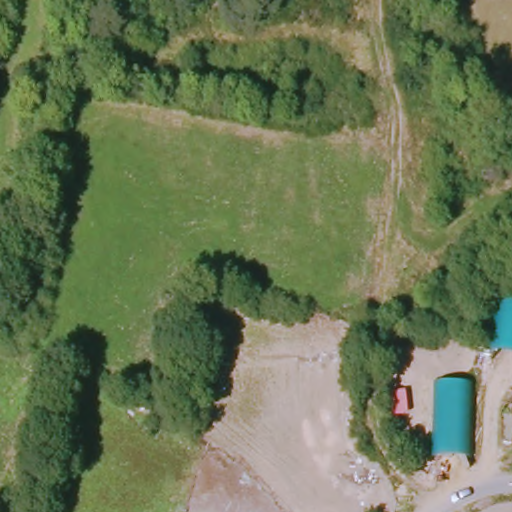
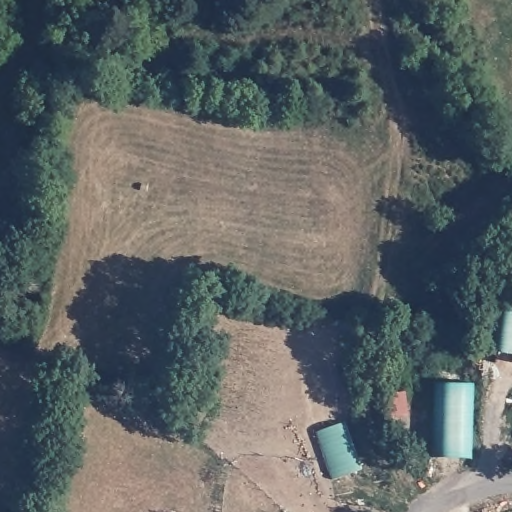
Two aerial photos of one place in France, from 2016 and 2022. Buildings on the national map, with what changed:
unchanged [(512,292),(512,353),(490,349),(498,290),(512,292)]
unchanged [(470,385),(468,460),(433,458),(435,382),(470,385)]
new [(320,431),(348,422),(365,468),(336,478),(320,431)]

